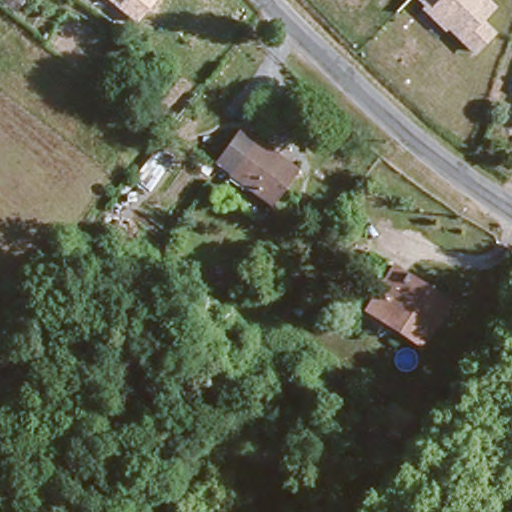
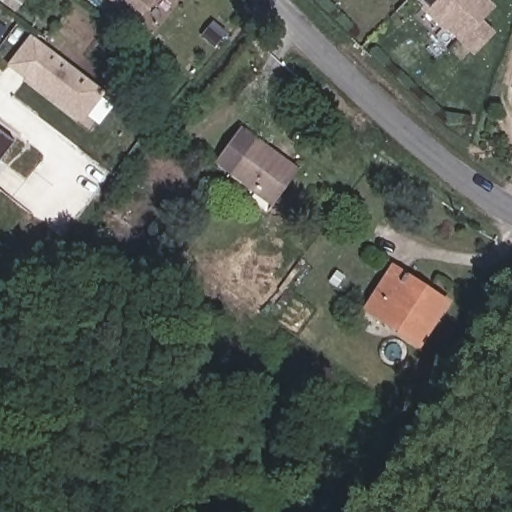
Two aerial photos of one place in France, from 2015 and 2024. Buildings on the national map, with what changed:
unchanged [(0,5),(0,0),(24,0),(15,17),(0,5)]
unchanged [(108,0),(157,0),(135,22),(108,0)]
unchanged [(486,20),(498,34),(476,56),(451,30),(447,35),(412,0),(489,0),(497,8),(486,20)]
new [(105,89),(82,117),(12,62),(34,34),(105,89)]
new [(0,130),(15,141),(0,160),(0,130)]
unchanged [(272,205),(229,172),(217,162),(243,131),(255,140),(297,172),(272,205)]
unchanged [(365,305),(393,263),(408,271),(403,278),(426,291),(431,285),(444,295),(419,336),(365,305)]

